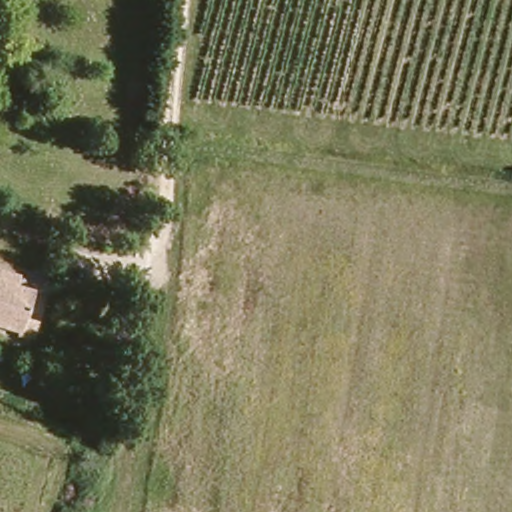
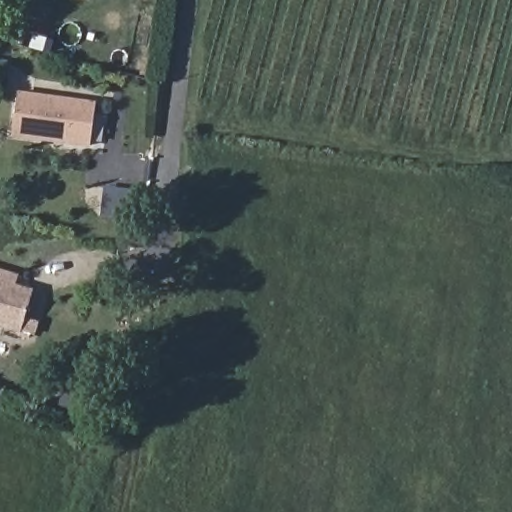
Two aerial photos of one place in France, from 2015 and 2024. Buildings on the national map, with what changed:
new [(91,148),(12,138),(18,91),(97,101),(91,148)]
new [(140,220),(100,218),(104,187),(143,191),(140,220)]
unchanged [(26,320),(37,324),(33,337),(0,327),(0,273),(18,278),(15,289),(34,294),(26,320)]

